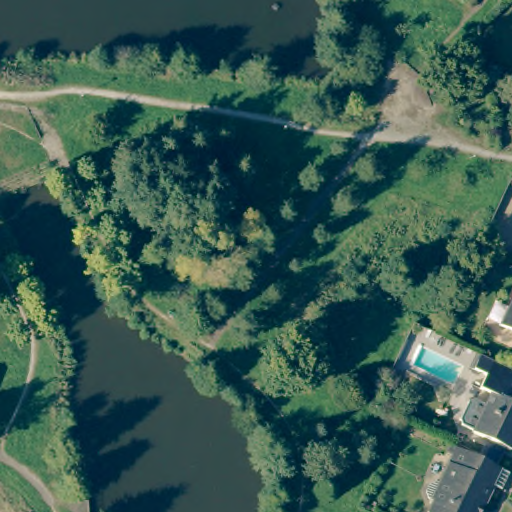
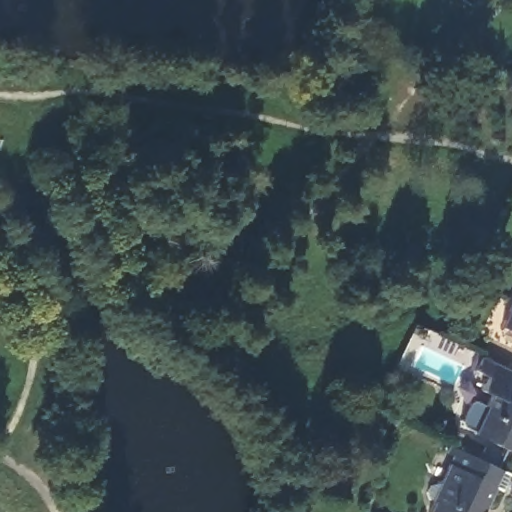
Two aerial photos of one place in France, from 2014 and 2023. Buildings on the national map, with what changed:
unchanged [(502,326),(512,305),(512,331),(502,326)]
unchanged [(510,447),(473,429),(474,427),(463,422),(461,416),(469,398),(475,396),(486,401),(492,391),(481,386),(488,371),(473,364),(480,349),(512,365),(512,443),(510,447)]
unchanged [(435,498),(430,496),(426,487),(429,480),(437,478),(439,479),(451,452),(447,450),(451,441),(456,443),(476,453),(509,469),(501,485),(495,482),(486,501),(480,512),(429,512),(429,510),(435,498)]

